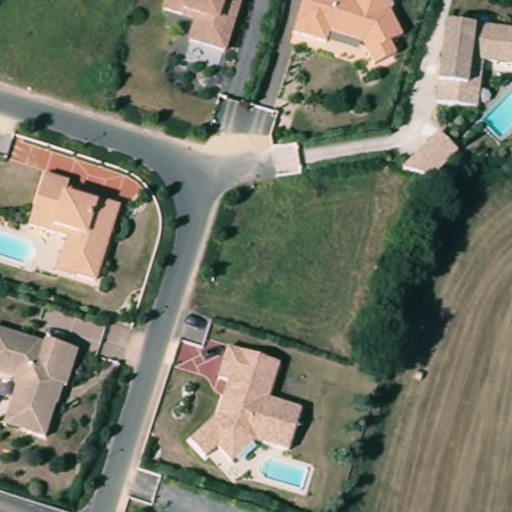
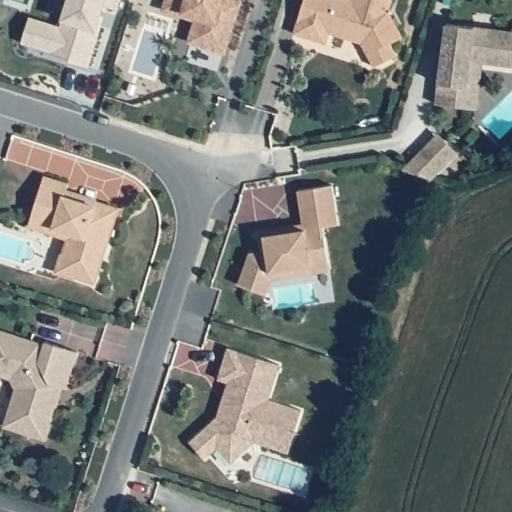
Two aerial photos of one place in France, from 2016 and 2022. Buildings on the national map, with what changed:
new [(68,61),(69,58),(21,44),(29,15),(59,26),(66,0),(120,0),(116,10),(105,5),(88,67),(68,61)]
unchanged [(228,51),(188,39),(194,17),(162,8),(165,0),(243,0),(228,51)]
unchanged [(388,10),(404,36),(393,42),(398,52),(375,63),(362,38),(332,28),(330,40),(296,31),(304,0),(391,0),(388,10)]
unchanged [(512,26),(512,61),(485,59),(481,106),(437,99),(446,17),(512,26)]
unchanged [(460,150),(421,190),(400,169),(437,131),(460,150)]
unchanged [(72,179),(69,186),(121,203),(98,281),(57,268),(66,236),(28,224),(44,171),(72,179)]
new [(265,294),(258,292),(237,285),(248,253),(259,251),(257,236),(256,231),(302,223),(297,190),(331,185),(337,224),(322,226),(328,262),(329,270),(311,273),(289,277),(270,279),(265,294)]
unchanged [(45,338),(82,350),(71,384),(64,383),(47,436),(4,423),(16,385),(12,376),(0,372),(0,328),(44,341),(45,338)]
unchanged [(190,439),(216,418),(227,381),(218,378),(227,348),(277,364),(268,399),(301,410),(288,453),(254,443),(230,463),(217,447),(203,458),(190,439)]

